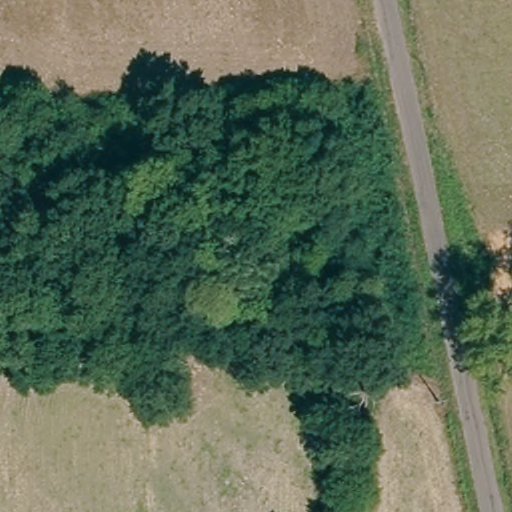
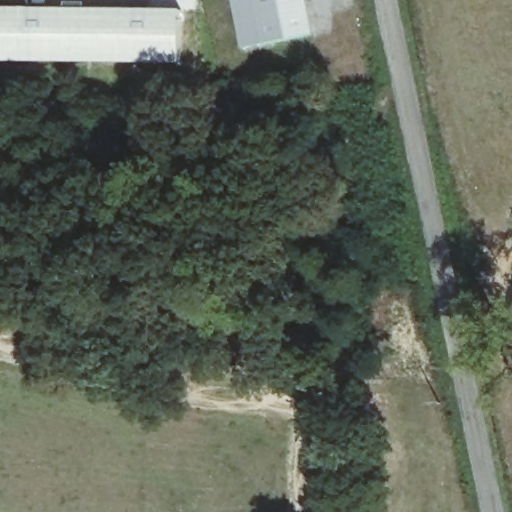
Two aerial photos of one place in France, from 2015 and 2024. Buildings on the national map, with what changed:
new [(242,48),(232,0),(308,0),(315,34),(242,48)]
new [(183,12),(182,64),(0,62),(0,10),(183,12)]

